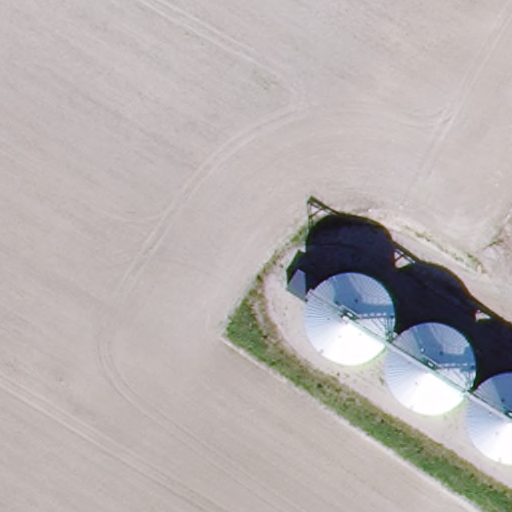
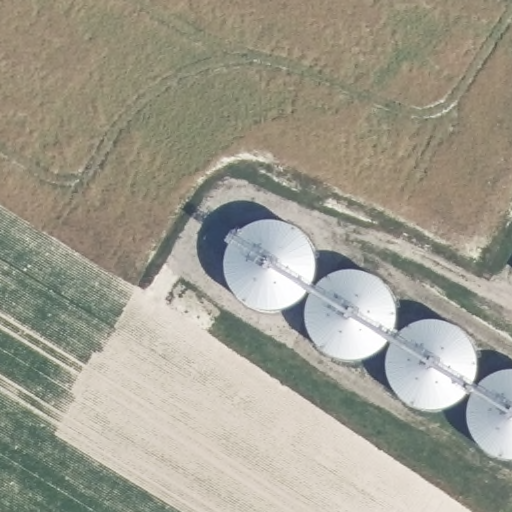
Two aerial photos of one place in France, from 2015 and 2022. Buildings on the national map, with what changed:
new [(302,304),(291,310),(279,314),(264,312),(250,308),(238,298),(231,284),(228,269),(229,254),(236,240),(249,229),(264,223),(279,223),(293,228),(305,236),(313,248),(318,259),(319,272),(315,283),(309,296),(302,304)]
unchanged [(378,356),(368,361),(356,364),(344,362),(332,358),(324,354),(317,346),(311,335),(309,326),(308,314),(311,300),(316,290),(326,280),(339,275),(348,273),(359,274),(369,275),(381,282),(392,294),(397,306),(399,318),(397,329),(393,339),(387,348),(378,356)]
unchanged [(456,407),(446,411),(435,413),(424,413),(414,409),(403,401),(395,392),(390,381),(389,369),(390,358),(394,346),(401,336),(409,329),(421,324),(433,323),(446,324),(457,329),(469,338),(476,349),(479,361),(480,373),(478,383),(472,392),(467,398),(463,402),(456,407)]
unchanged [(510,463),(499,461),(489,456),(482,449),(477,443),(472,434),(469,423),(469,412),(471,404),(477,393),(483,386),(492,379),(498,376),(501,374),(511,372),(512,372),(512,463),(510,463)]

